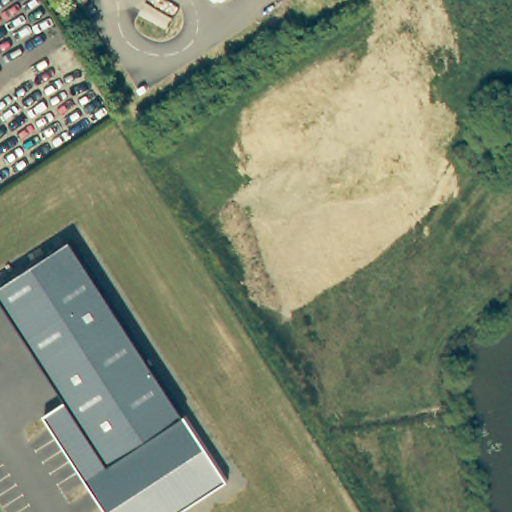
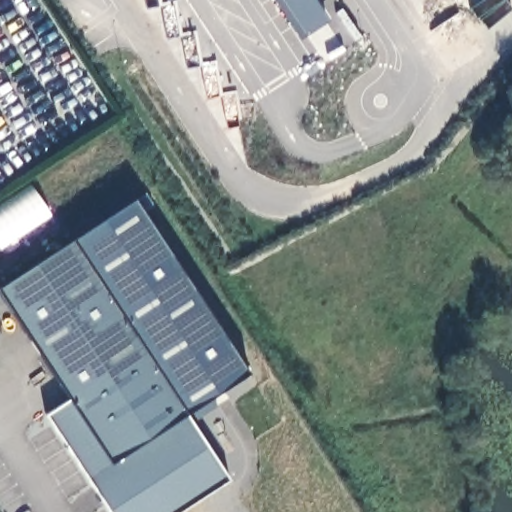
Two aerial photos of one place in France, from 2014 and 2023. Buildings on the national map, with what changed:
new [(300,40),(273,0),(315,0),(328,21),(300,40)]
new [(186,415),(71,242),(136,200),(250,373),(213,397),(217,407),(192,425),(186,415)]
unchanged [(181,512),(108,512),(45,416),(68,401),(0,297),(0,286),(71,242),(186,415),(229,481),(181,512)]

